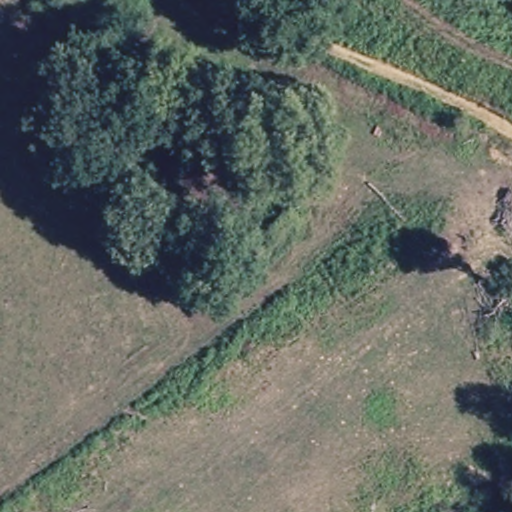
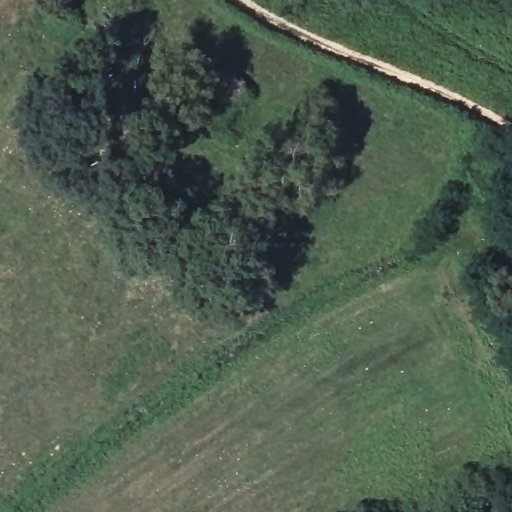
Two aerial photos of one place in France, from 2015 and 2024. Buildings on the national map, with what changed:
[]

